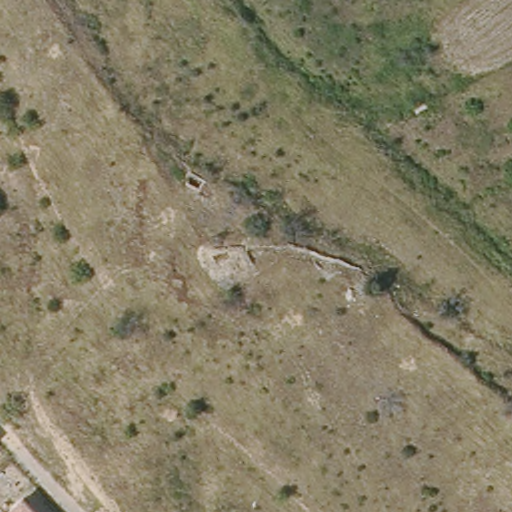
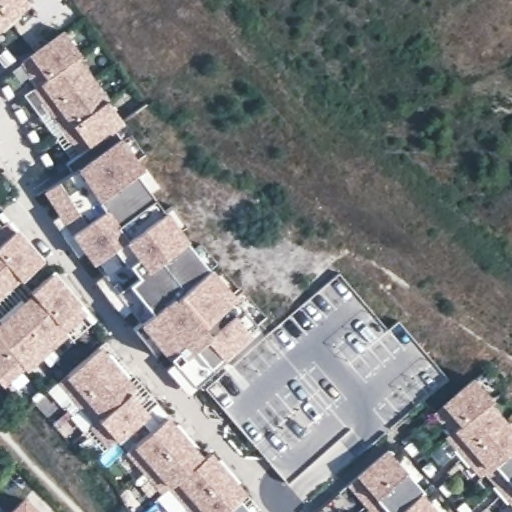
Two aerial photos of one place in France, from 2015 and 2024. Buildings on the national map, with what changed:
new [(0,30),(0,0),(29,0),(32,3),(0,30)]
new [(79,53),(76,55),(125,123),(113,130),(78,153),(33,88),(36,85),(18,61),(28,54),(61,30),(79,53)]
new [(118,136),(142,167),(136,172),(187,238),(185,241),(234,296),(262,327),(195,386),(175,362),(140,321),(115,293),(92,263),(70,233),(45,190),(70,171),(64,163),(78,153),(113,130),(118,136)]
new [(6,222),(40,262),(19,281),(16,278),(0,291),(0,228),(6,222)]
demolished [(243,271),(208,272),(207,248),(242,247),(243,271)]
new [(386,329),(397,320),(447,379),(357,457),(340,438),(287,484),(203,387),(338,272),(386,329)]
new [(31,295),(28,292),(50,273),(85,313),(62,332),(65,335),(25,370),(22,367),(1,385),(0,383),(0,322),(31,295)]
new [(98,347),(133,388),(129,392),(147,413),(108,446),(90,425),(95,421),(59,381),(98,347)]
new [(472,378),(490,399),(486,403),(485,402),(450,432),(450,431),(433,412),(472,378)]
new [(450,431),(450,432),(485,402),(486,403),(502,421),(463,455),(445,435),(450,431)]
new [(165,417),(201,459),(208,452),(245,494),(239,499),(250,512),(191,512),(169,487),(162,493),(126,451),(165,417)]
new [(512,432),(512,448),(485,472),(481,476),(480,475),(463,455),(502,421),(512,432)]
new [(512,483),(502,492),(485,472),(512,448),(512,483)]
new [(386,450),(405,470),(365,504),(348,483),(386,450)]
new [(405,470),(422,491),(419,494),(418,494),(397,512),(373,512),(365,504),(405,470)]
new [(512,503),(502,492),(512,483),(512,503)]
new [(418,494),(419,494),(434,512),(397,512),(418,494)]
unchanged [(37,512),(5,512),(22,497),(37,512)]

